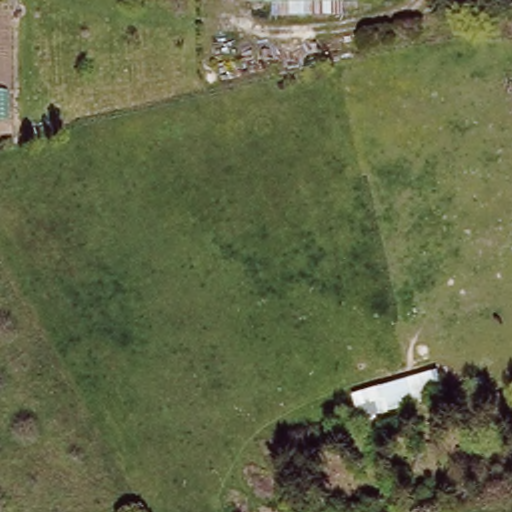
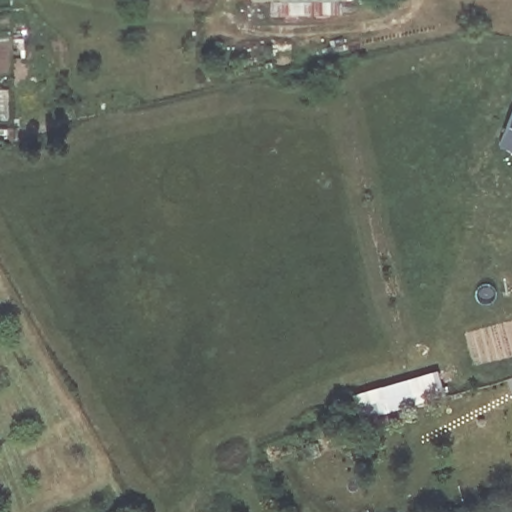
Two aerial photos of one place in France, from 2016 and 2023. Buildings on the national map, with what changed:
new [(499,145),(512,110),(512,150),(499,145)]
unchanged [(408,379),(416,404),(359,419),(351,396),(408,379)]

